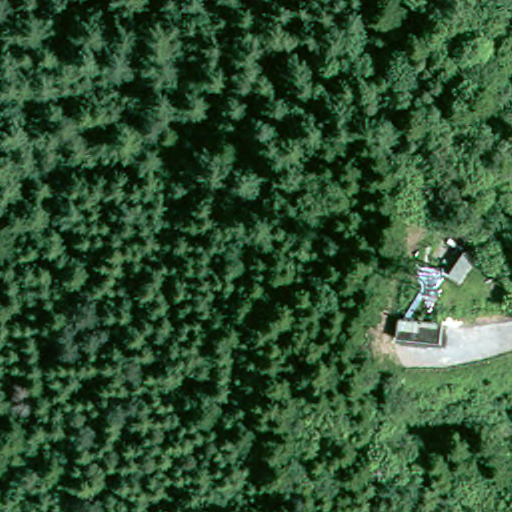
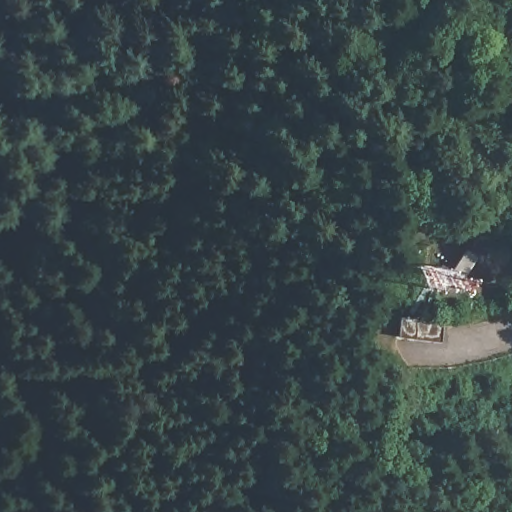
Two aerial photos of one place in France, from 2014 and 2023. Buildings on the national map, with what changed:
unchanged [(396,318),(443,322),(443,339),(394,338),(396,318)]

